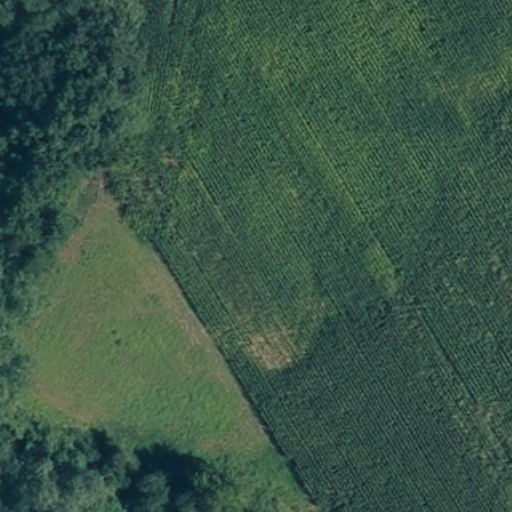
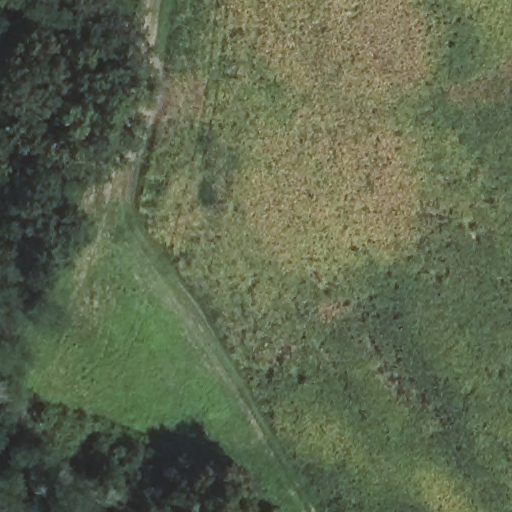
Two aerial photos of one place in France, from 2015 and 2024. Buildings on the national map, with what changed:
[]

